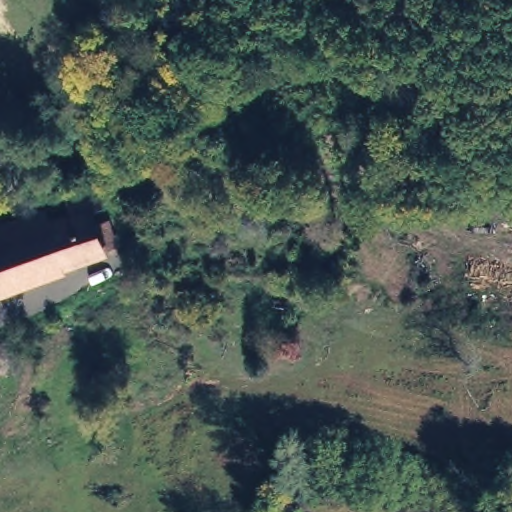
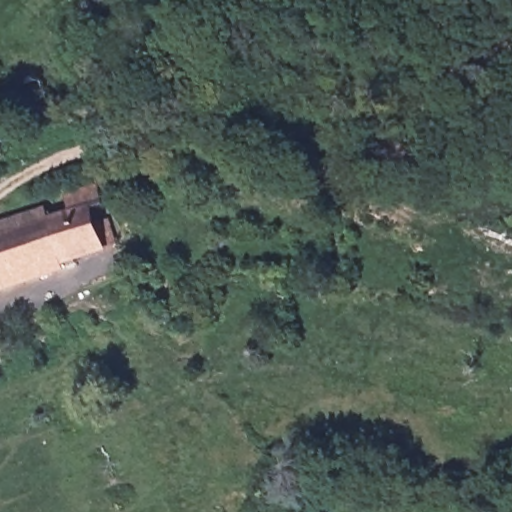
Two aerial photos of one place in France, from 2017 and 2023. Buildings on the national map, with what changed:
unchanged [(92,194),(111,255),(0,290),(0,226),(92,194)]

